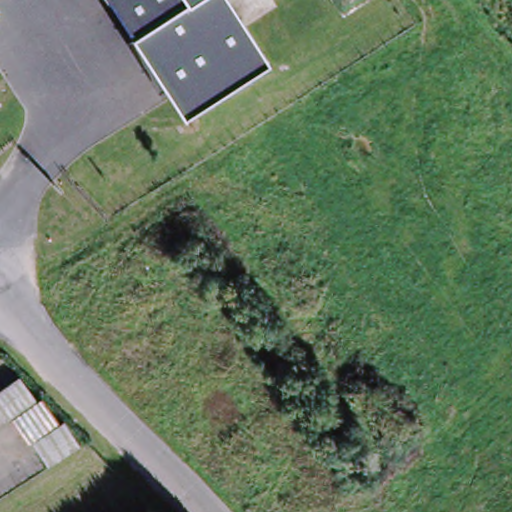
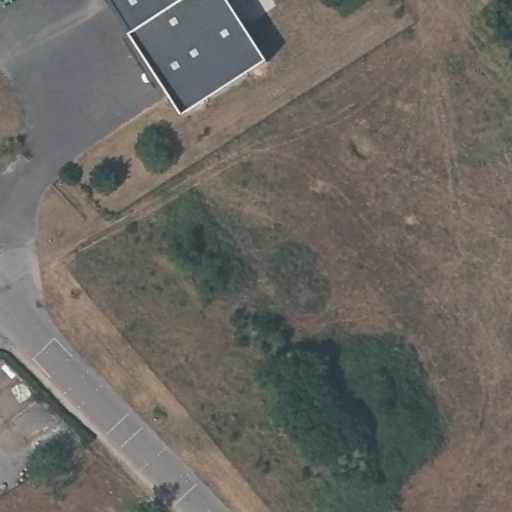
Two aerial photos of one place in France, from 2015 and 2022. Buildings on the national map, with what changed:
unchanged [(183,117),(107,0),(226,0),(267,64),(183,117)]

